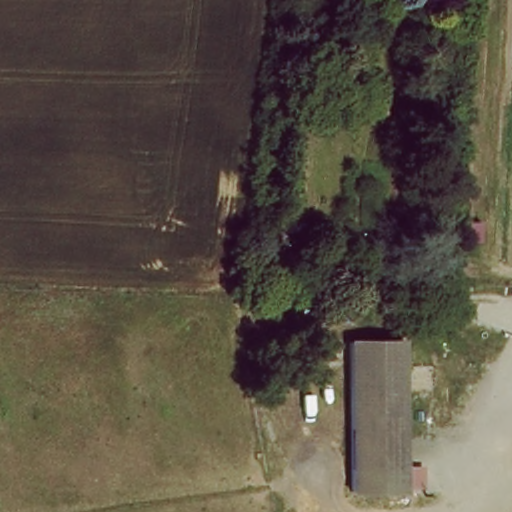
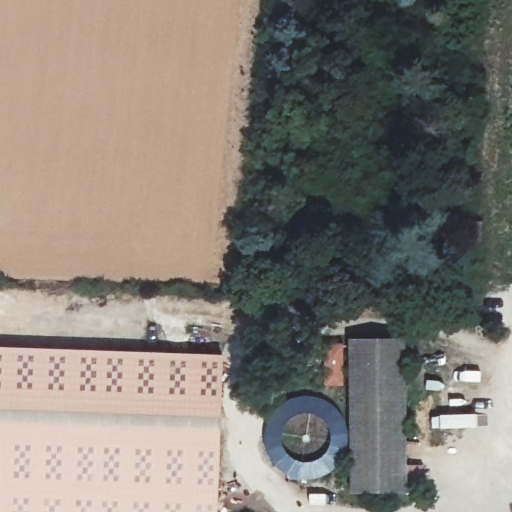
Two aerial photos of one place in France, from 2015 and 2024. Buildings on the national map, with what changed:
unchanged [(290,254),(346,255),(346,278),(289,275),(290,254)]
unchanged [(351,488),(349,338),(402,341),(405,488),(351,488)]
new [(221,512),(0,512),(0,341),(226,348),(221,512)]

